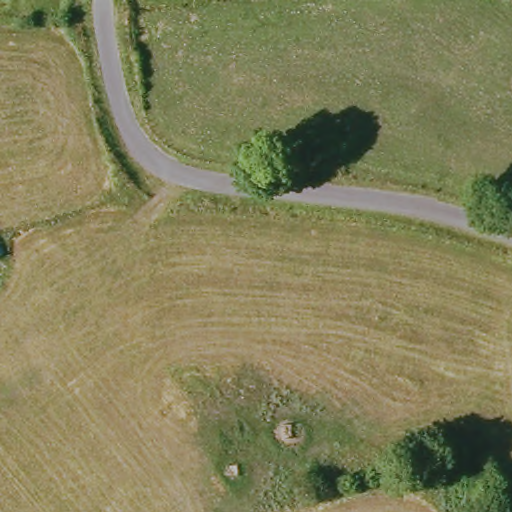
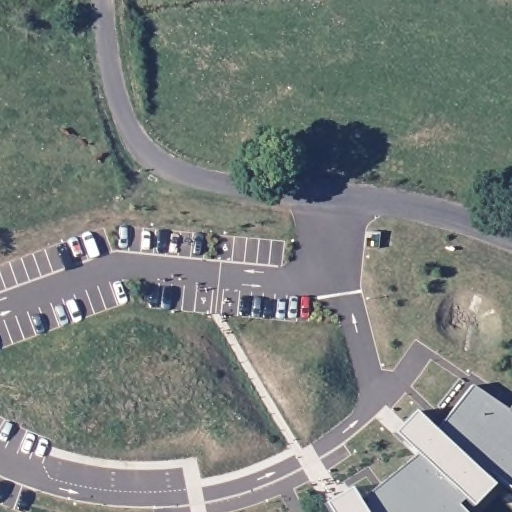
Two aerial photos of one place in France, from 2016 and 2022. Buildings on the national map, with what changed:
new [(325,504),(351,488),(357,498),(362,507),(371,501),(367,494),(416,456),(402,442),(393,434),(415,412),(424,420),(435,432),(471,387),(507,412),(512,406),(512,491),(490,472),(452,505),(459,512),(330,512),(325,504)]

